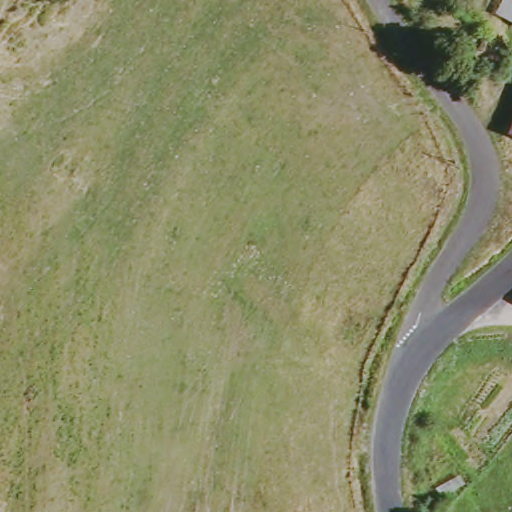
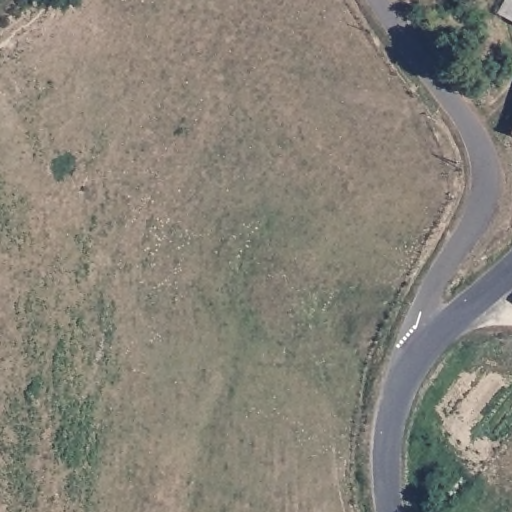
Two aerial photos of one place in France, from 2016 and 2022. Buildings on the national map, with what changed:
unchanged [(497,15),(506,0),(512,0),(512,23),(497,15)]
unchanged [(512,122),(512,132),(508,130),(512,122)]

